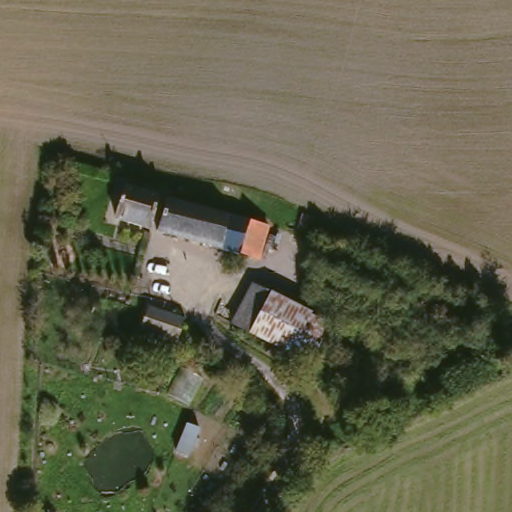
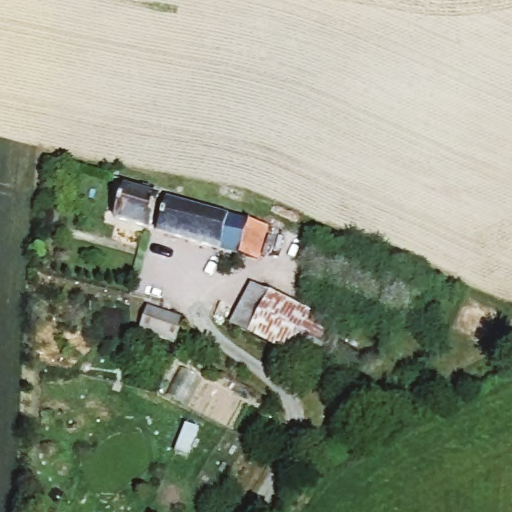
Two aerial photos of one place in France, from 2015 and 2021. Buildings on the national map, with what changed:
unchanged [(116,181),(135,186),(138,180),(158,186),(147,227),(106,215),(116,181)]
unchanged [(167,198),(259,225),(250,255),(153,229),(163,198),(167,195),(167,198)]
unchanged [(254,337),(234,327),(253,285),(273,294),(254,337)]
unchanged [(288,354),(254,337),(273,294),(307,311),(288,354)]
unchanged [(168,341),(135,330),(141,307),(176,317),(168,341)]

